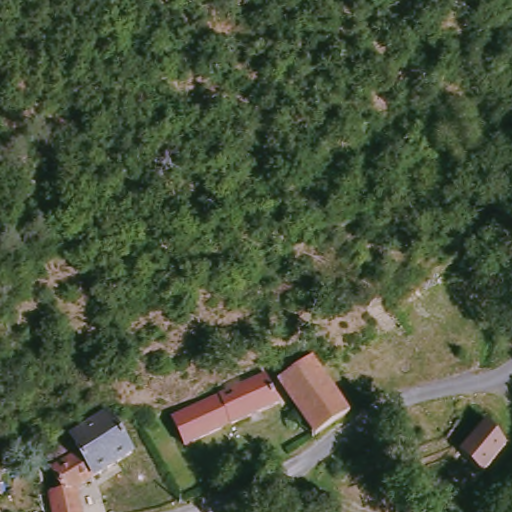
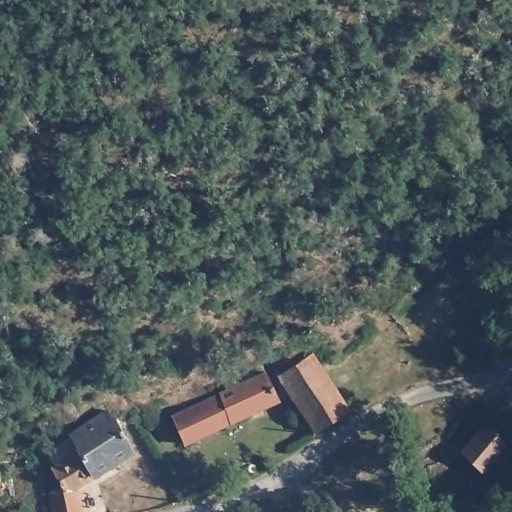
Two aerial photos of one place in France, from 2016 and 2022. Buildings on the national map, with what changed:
unchanged [(297,344),(302,353),(312,347),(352,411),(348,415),(320,434),(290,389),(281,375),(287,371),(277,353),(297,344)]
unchanged [(216,383),(273,355),(280,380),(288,398),(234,422),(221,393),(216,383)]
unchanged [(221,393),(234,422),(188,443),(173,414),(195,405),(221,393)]
unchanged [(75,489),(82,512),(52,512),(50,499),(60,496),(50,478),(55,475),(47,463),(72,444),(68,437),(110,411),(117,422),(130,415),(147,445),(75,489)]
unchanged [(507,442),(482,470),(460,449),(488,419),(507,442)]
unchanged [(0,491),(0,474),(2,490),(0,491)]

